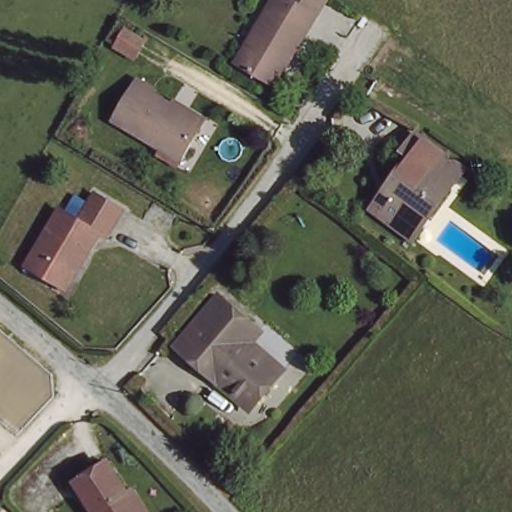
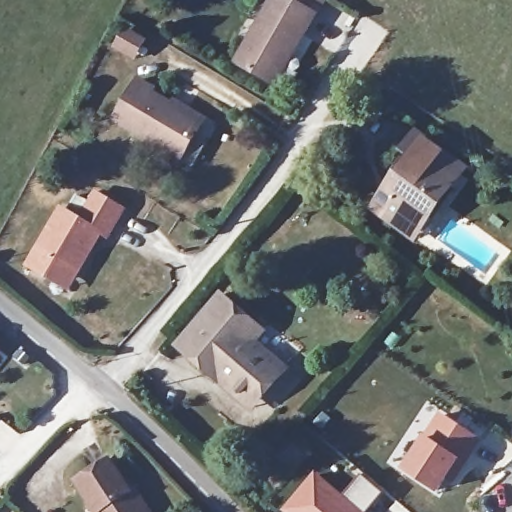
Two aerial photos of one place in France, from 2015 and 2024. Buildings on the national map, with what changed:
unchanged [(271,83),(240,66),(282,0),(289,0),(320,18),(298,55),(279,88),(271,83)]
unchanged [(206,119),(202,126),(182,160),(113,119),(138,79),(156,90),(206,119)]
unchanged [(405,235),(373,214),(410,163),(402,156),(417,136),(437,151),(465,171),(458,181),(431,219),(415,241),(405,235)]
unchanged [(60,280),(34,266),(66,211),(88,225),(95,213),(91,209),(100,195),(128,211),(112,239),(103,235),(78,280),(74,288),(60,280)]
unchanged [(219,384),(179,352),(219,302),(259,333),(253,343),(282,368),(258,397),(250,408),(219,384)]
new [(455,484),(446,479),(437,494),(399,469),(422,434),(425,436),(441,411),(483,439),(455,484)]
unchanged [(112,461),(135,491),(140,488),(154,512),(102,512),(81,478),(112,461)]
new [(284,512),(283,511),(317,472),(345,496),(362,475),(383,493),(366,512),(284,512)]

